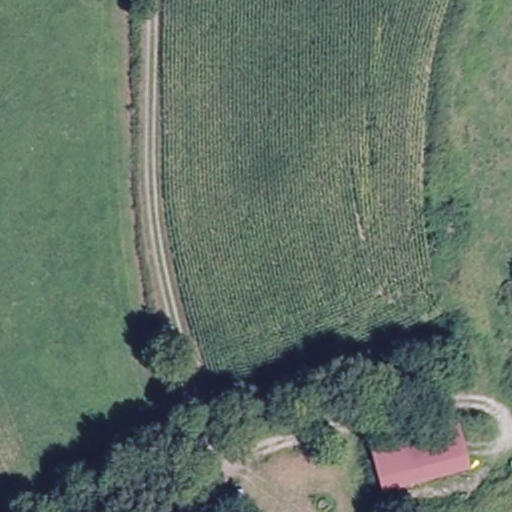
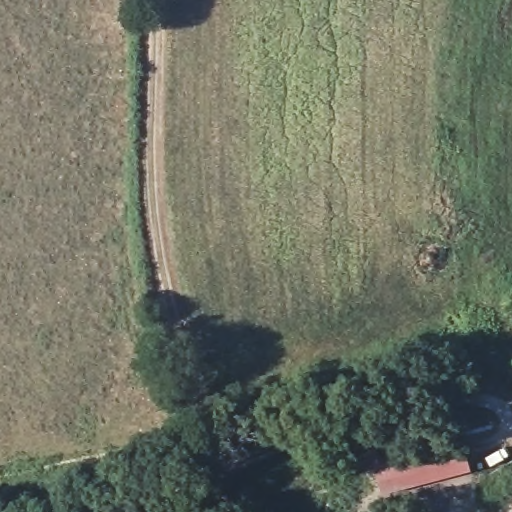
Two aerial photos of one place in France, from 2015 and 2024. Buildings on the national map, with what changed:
unchanged [(367,439),(456,417),(470,471),(382,496),(367,439)]

